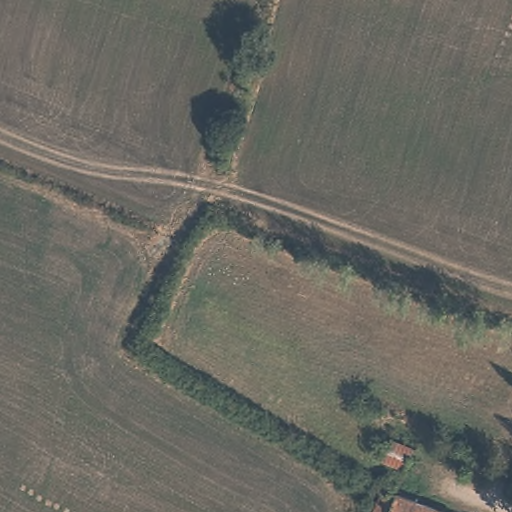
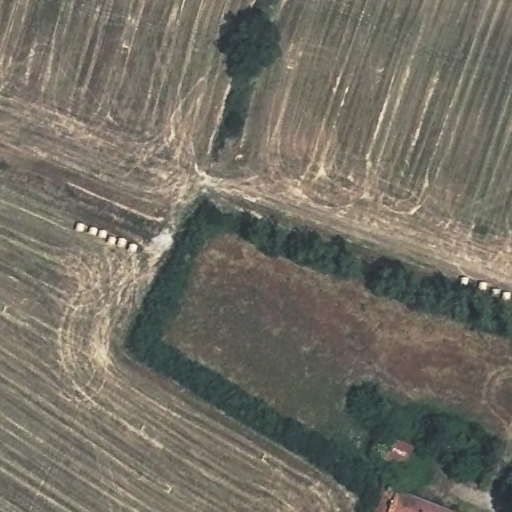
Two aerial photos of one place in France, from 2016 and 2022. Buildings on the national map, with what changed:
unchanged [(406,471),(390,465),(380,460),(388,439),(398,442),(414,449),(406,471)]
unchanged [(385,492),(386,489),(447,512),(378,512),(385,492)]

